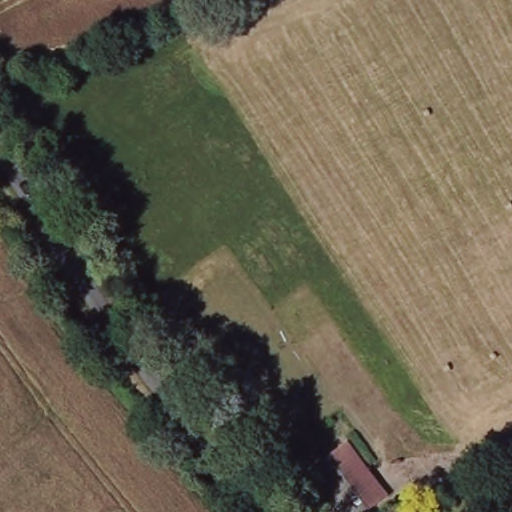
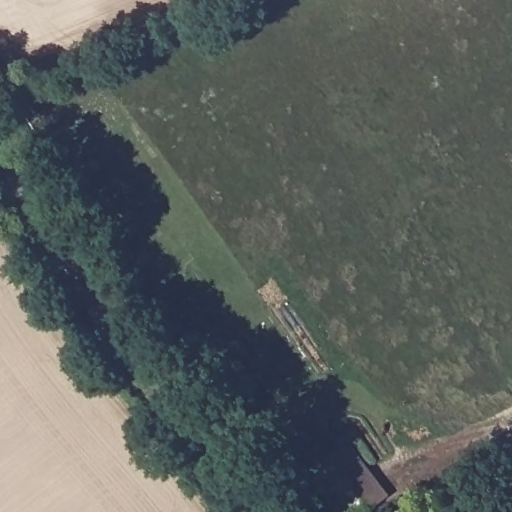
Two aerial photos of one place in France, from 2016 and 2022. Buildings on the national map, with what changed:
unchanged [(347,512),(316,471),(353,443),(396,497),(372,512),(347,512)]

